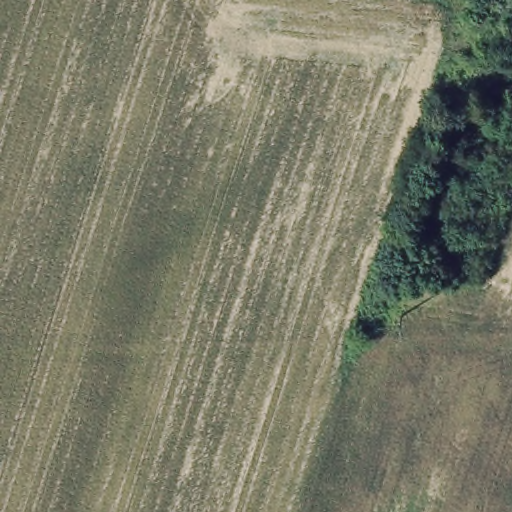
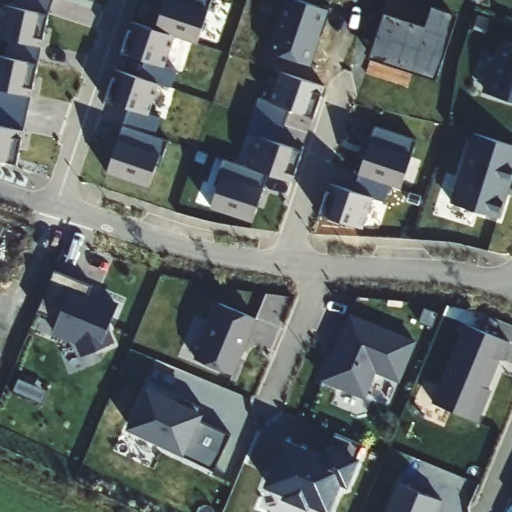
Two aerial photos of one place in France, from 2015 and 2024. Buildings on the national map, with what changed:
new [(28,112),(0,106),(0,54),(4,55),(8,39),(0,37),(0,20),(3,4),(12,5),(14,0),(53,0),(42,44),(28,112)]
new [(175,35),(165,64),(178,69),(172,86),(158,82),(149,112),(162,116),(156,135),(166,138),(150,187),(107,172),(128,110),(105,101),(116,67),(137,76),(143,61),(121,53),(132,21),(155,30),(164,0),(212,0),(197,43),(175,35)]
new [(298,0),(329,10),(310,67),(265,50),(283,0),(298,0)]
new [(423,30),(430,10),(453,17),(435,82),(368,60),(382,17),(423,30)]
new [(500,40),(512,43),(512,100),(484,92),(500,40)]
new [(287,104),(285,108),(269,102),(280,72),(323,87),(313,117),(305,114),(287,104)]
new [(269,102),(285,108),(287,104),(291,107),(278,141),(302,151),(291,182),(267,174),(252,222),(210,208),(218,186),(213,184),(223,157),(247,165),(259,135),(247,130),(259,97),(269,102)]
new [(15,166),(0,161),(0,106),(28,112),(15,166)]
new [(402,188),(389,184),(384,200),(373,196),(362,229),(319,214),(330,181),(352,190),(375,125),(417,140),(402,188)]
new [(464,131),(512,144),(512,189),(505,216),(445,200),(464,131)]
new [(7,268),(0,267),(0,221),(17,226),(7,268)]
new [(57,270),(94,286),(95,282),(112,287),(111,297),(120,301),(117,340),(105,343),(82,354),(77,342),(49,327),(57,310),(50,310),(42,306),(57,270)]
new [(253,318),(231,378),(195,361),(215,305),(253,318)]
new [(416,338),(397,381),(374,375),(366,398),(322,382),(348,312),(416,338)]
new [(508,341),(477,422),(432,404),(463,325),(508,341)]
new [(150,380),(175,392),(172,398),(184,403),(187,399),(205,405),(198,421),(233,435),(212,478),(172,458),(178,447),(130,426),(150,380)]
new [(285,439),(314,450),(323,425),(364,441),(361,452),(367,455),(354,484),(347,482),(337,511),(269,484),(285,439)]
new [(400,474),(443,492),(437,512),(385,512),(400,474)]

